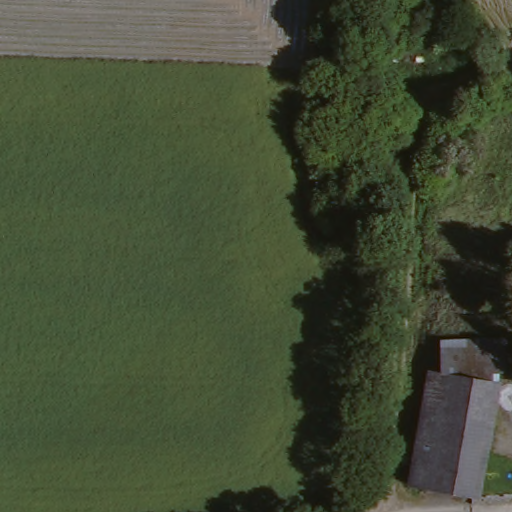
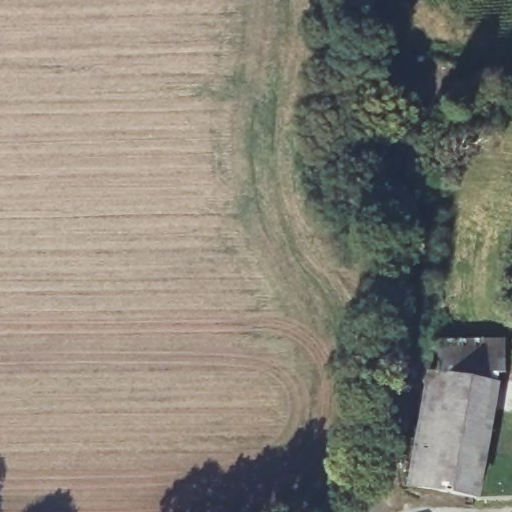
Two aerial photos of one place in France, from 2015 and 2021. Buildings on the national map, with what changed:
unchanged [(444,95),(438,70),(484,59),(488,84),(444,95)]
unchanged [(512,352),(512,379),(452,380),(451,352),(512,352)]
unchanged [(419,489),(438,378),(452,380),(504,388),(486,503),(483,502),(437,492),(419,489)]

